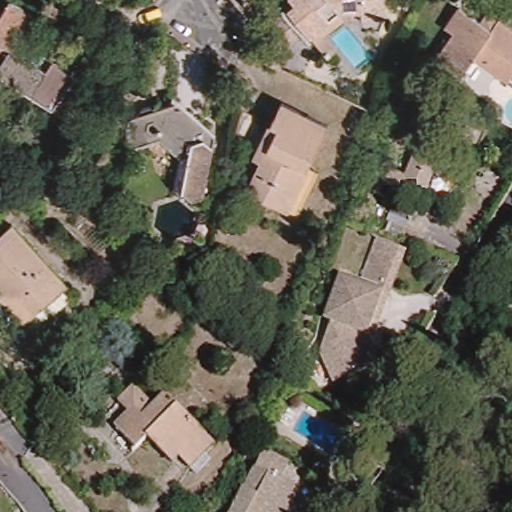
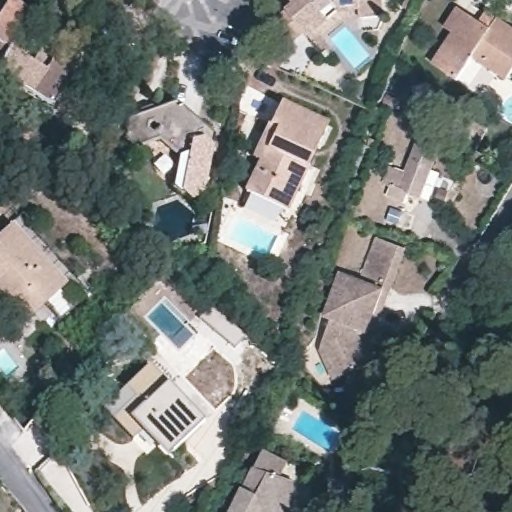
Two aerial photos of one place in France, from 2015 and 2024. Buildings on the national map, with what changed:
unchanged [(0,45),(0,20),(12,0),(15,0),(39,15),(15,54),(10,50),(0,45)]
unchanged [(319,36),(329,49),(322,52),(304,31),(300,26),(286,38),(270,19),(290,2),(288,0),(390,0),(388,22),(364,20),(340,19),(319,36)]
unchanged [(474,58),(458,80),(434,64),(455,32),(448,26),(462,6),(472,13),(479,4),(490,11),(512,28),(512,73),(506,80),(474,58)]
unchanged [(0,78),(0,69),(10,50),(15,54),(51,75),(36,99),(0,78)]
unchanged [(51,75),(54,76),(68,54),(82,62),(79,66),(86,71),(72,93),(87,102),(75,122),(36,99),(51,75)]
unchanged [(205,193),(193,200),(184,191),(191,163),(157,134),(137,141),(127,132),(130,117),(177,99),(217,132),(205,193)]
unchanged [(291,213),(250,194),(263,164),(257,160),(283,104),(331,126),(291,213)]
unchanged [(423,202),(412,197),(408,206),(390,200),(394,189),(384,185),(392,167),(411,175),(426,137),(445,145),(423,202)]
unchanged [(36,327),(27,318),(0,292),(0,231),(8,222),(67,278),(76,286),(36,327)]
unchanged [(387,285),(382,283),(362,275),(378,238),(398,246),(403,249),(387,285)]
unchanged [(368,332),(379,357),(366,363),(333,378),(321,346),(332,319),(326,315),(343,273),(381,290),(386,291),(368,332)]
unchanged [(246,331),(235,343),(202,315),(212,303),(246,331)]
unchanged [(182,455),(175,462),(150,436),(139,445),(107,415),(135,385),(154,404),(168,390),(219,441),(209,451),(213,456),(199,470),(194,465),(182,455)]
unchanged [(365,426),(361,437),(349,433),(352,427),(355,420),(365,426)]
unchanged [(265,451),(289,464),(283,480),(293,483),(295,512),(232,512),(256,468),(265,451)]

